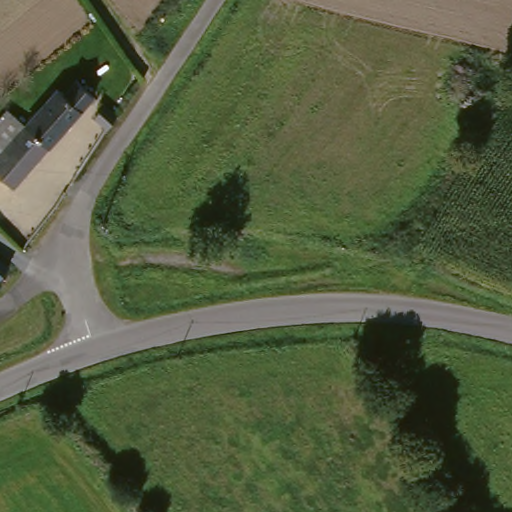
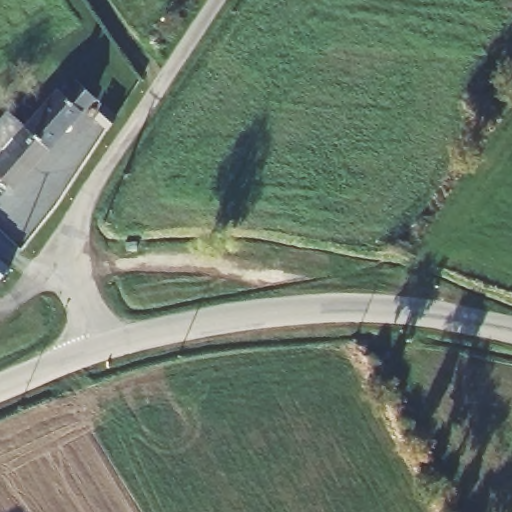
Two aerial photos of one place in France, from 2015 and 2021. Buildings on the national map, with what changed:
unchanged [(88,100),(35,166),(19,186),(0,170),(0,158),(11,146),(27,125),(60,80),(65,84),(69,78),(72,74),(95,91),(88,100)]
unchanged [(8,110),(27,125),(11,146),(0,158),(0,120),(8,110)]
unchanged [(11,267),(2,278),(0,276),(0,257),(11,267)]

